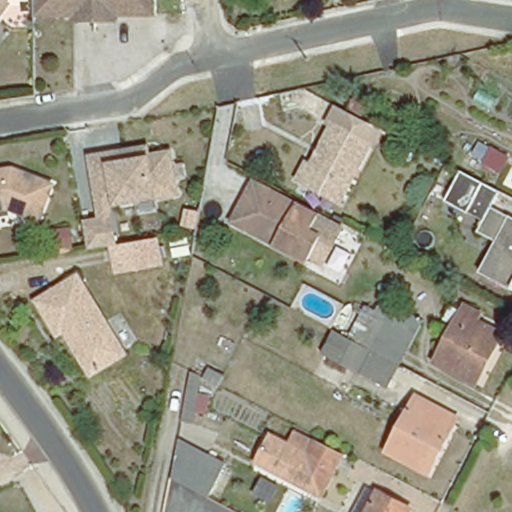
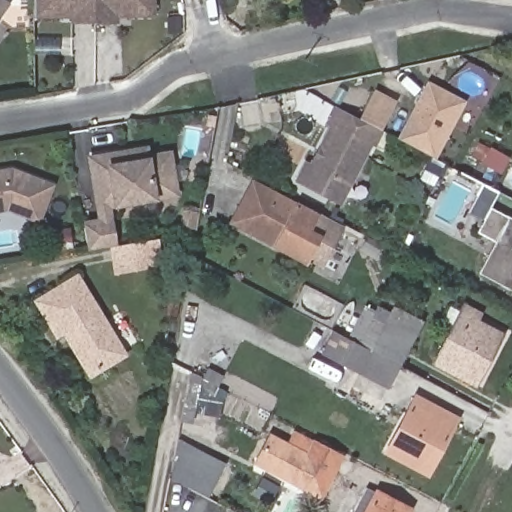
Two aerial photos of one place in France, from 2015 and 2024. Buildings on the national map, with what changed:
unchanged [(33,0),(153,0),(153,14),(114,14),(114,20),(107,20),(76,20),(70,20),(70,14),(33,15),(33,0)]
new [(433,83),(468,101),(440,157),(405,139),(433,83)]
new [(378,91),(401,102),(387,130),(365,117),(378,91)]
unchanged [(306,166),(311,168),(332,125),(370,144),(341,202),(298,181),(306,166)]
unchanged [(110,207),(116,245),(90,249),(86,220),(97,219),(88,155),(147,146),(149,153),(174,150),(181,196),(110,207)]
unchanged [(511,283),(478,265),(496,233),(480,224),(485,215),(447,194),(461,165),(501,185),(492,200),(512,211),(512,281),(511,283)]
unchanged [(50,184),(37,218),(7,206),(0,207),(0,170),(10,169),(50,184)]
unchanged [(319,234),(307,258),(236,221),(256,180),(317,213),(327,218),(319,234)]
unchanged [(196,225),(194,237),(183,235),(185,224),(196,225)]
unchanged [(69,234),(72,252),(56,255),(54,236),(69,234)]
unchanged [(115,270),(115,266),(112,247),(156,240),(159,260),(159,264),(115,270)]
unchanged [(175,246),(190,244),(192,261),(178,263),(175,246)]
unchanged [(64,323),(57,328),(36,293),(77,270),(123,347),(92,368),(64,323)]
unchanged [(351,338),(370,302),(391,313),(395,306),(422,320),(400,363),(351,338)]
unchanged [(466,305),(481,313),(478,320),(503,332),(477,382),(437,360),(466,305)]
unchanged [(325,350),(335,330),(351,338),(400,363),(388,383),(325,350)]
unchanged [(202,376),(194,422),(182,420),(192,370),(202,376)]
unchanged [(390,450),(417,395),(432,403),(458,416),(455,423),(431,471),(390,450)]
unchanged [(257,461),(270,435),(290,444),(296,433),(342,457),(322,495),(257,461)]
unchanged [(196,485),(172,473),(179,435),(225,460),(209,491),(196,485)]
unchanged [(377,487),(410,505),(407,512),(363,512),(377,487)]

